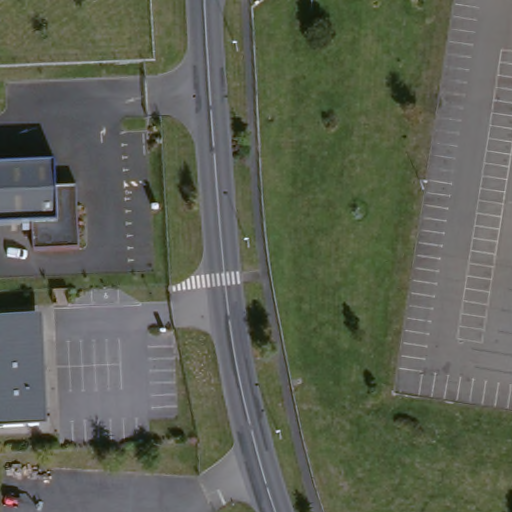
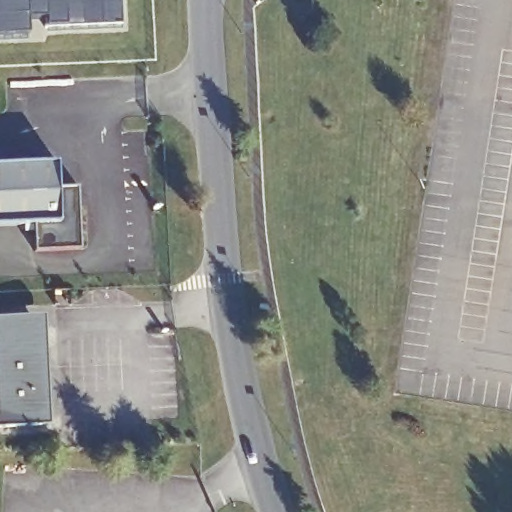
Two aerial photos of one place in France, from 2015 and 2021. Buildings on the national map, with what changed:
new [(45,29),(45,20),(27,20),(28,35),(0,37),(0,0),(121,0),(122,25),(45,29)]
unchanged [(83,187),(86,249),(40,251),(39,225),(0,226),(0,165),(62,162),(63,187),(83,187)]
unchanged [(52,425),(0,426),(0,315),(47,313),(52,425)]

